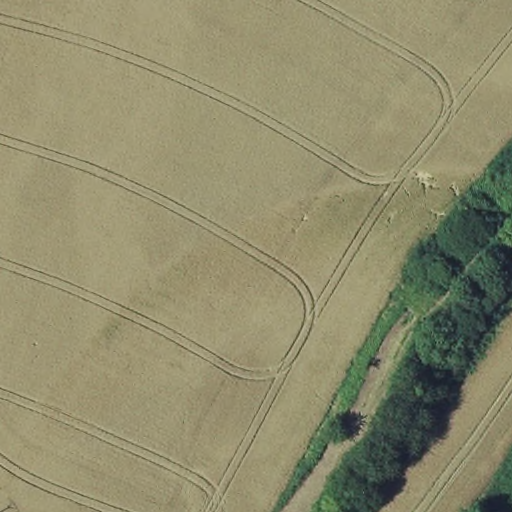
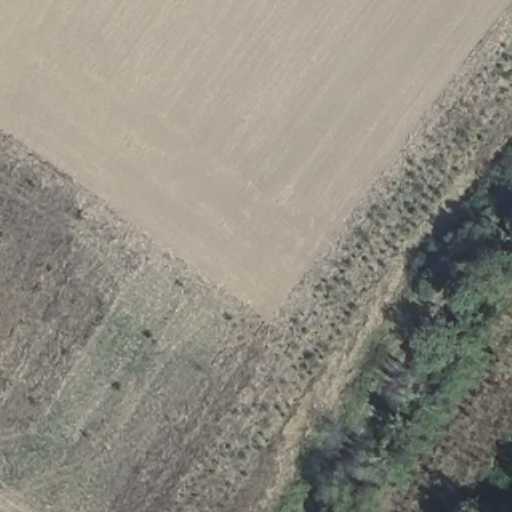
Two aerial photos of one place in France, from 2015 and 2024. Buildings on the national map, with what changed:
[]

